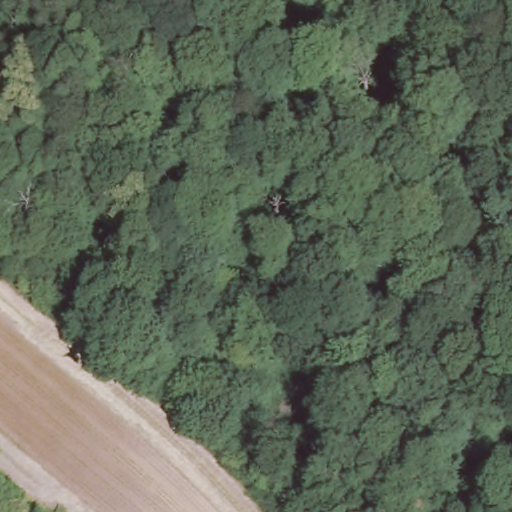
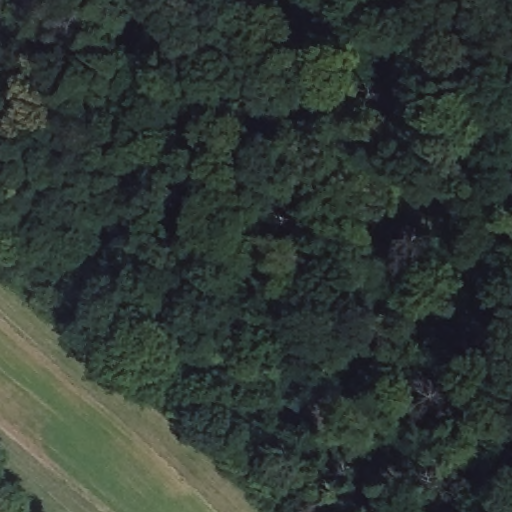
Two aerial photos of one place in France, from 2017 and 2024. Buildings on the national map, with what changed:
unchanged [(243,218),(223,237),(208,222),(233,203),(243,218)]

